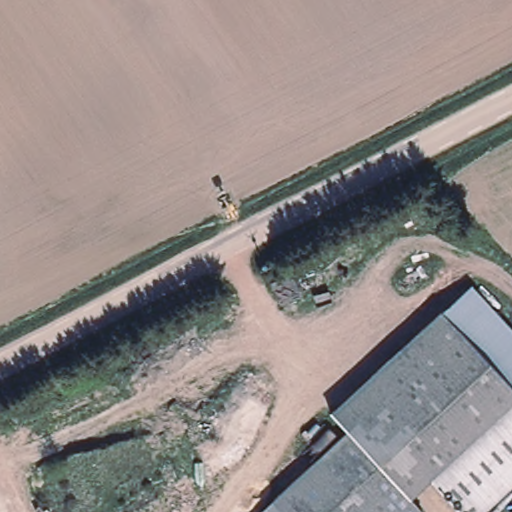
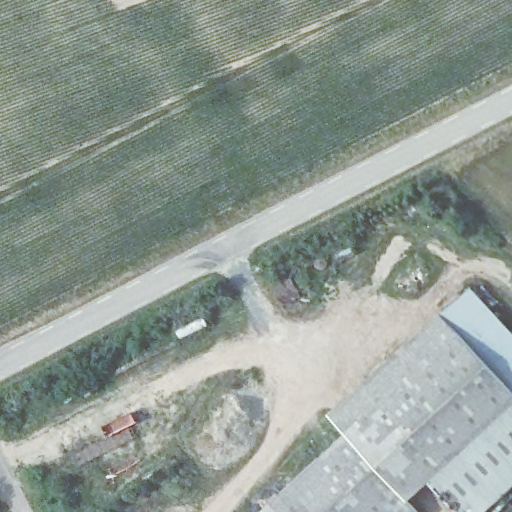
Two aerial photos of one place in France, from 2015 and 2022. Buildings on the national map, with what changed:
unchanged [(270,282),(288,272),(302,293),(280,304),(270,282)]
unchanged [(468,286),(512,333),(512,388),(441,311),(468,286)]
unchanged [(512,388),(512,398),(429,475),(407,495),(346,430),(331,414),(441,311),(512,388)]
unchanged [(481,512),(461,512),(429,475),(512,398),(512,483),(481,512)]
unchanged [(407,495),(389,512),(257,512),(346,430),(407,495)]

